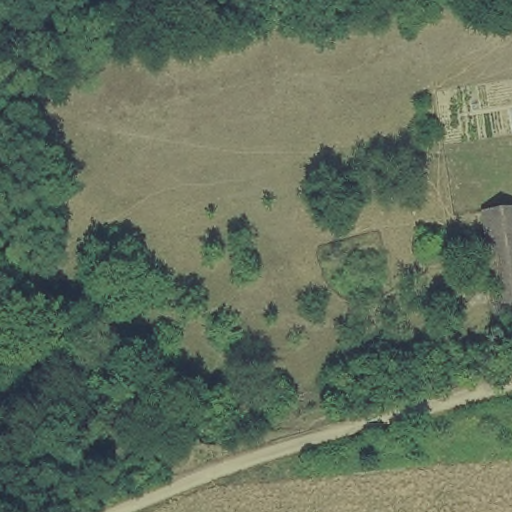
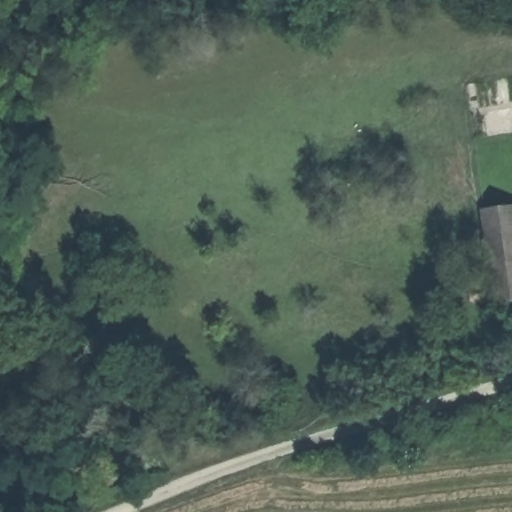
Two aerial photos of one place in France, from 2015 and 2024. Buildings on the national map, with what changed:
unchanged [(512,298),(497,301),(485,211),(512,207),(512,298)]

